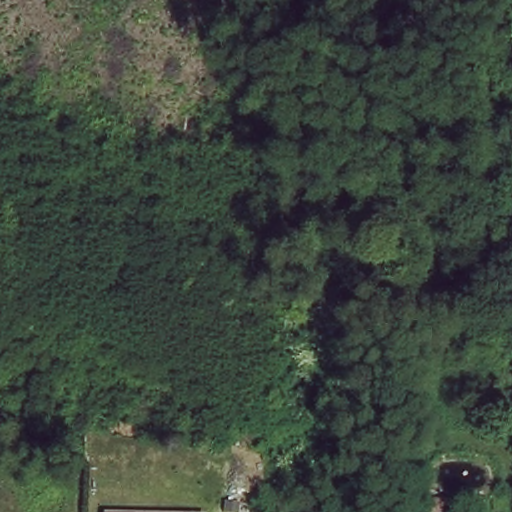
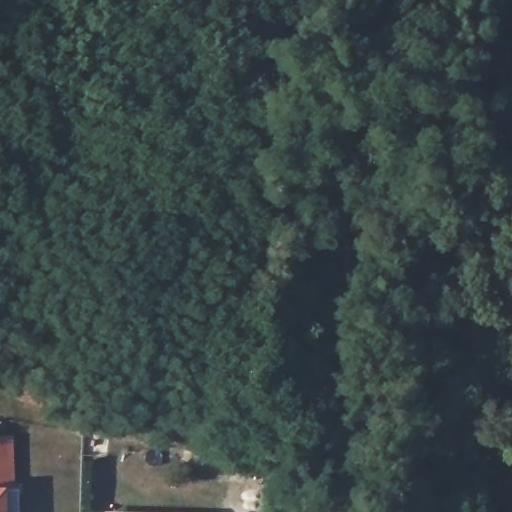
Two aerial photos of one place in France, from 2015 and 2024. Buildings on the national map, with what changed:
new [(13,436),(15,484),(8,484),(0,484),(0,436),(13,436)]
new [(8,484),(8,512),(0,512),(0,484),(8,484)]
unchanged [(99,509),(107,509),(196,511),(196,512),(99,512),(99,509)]

